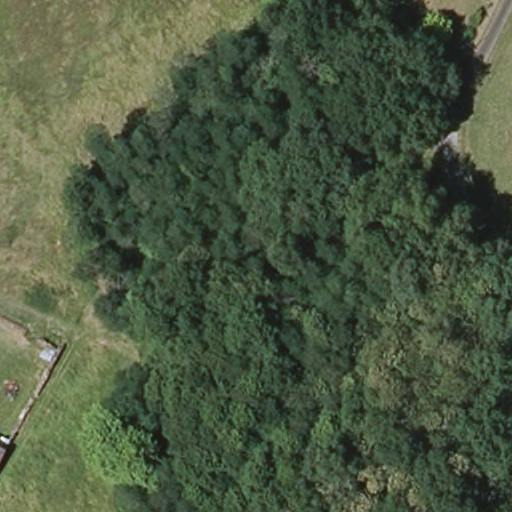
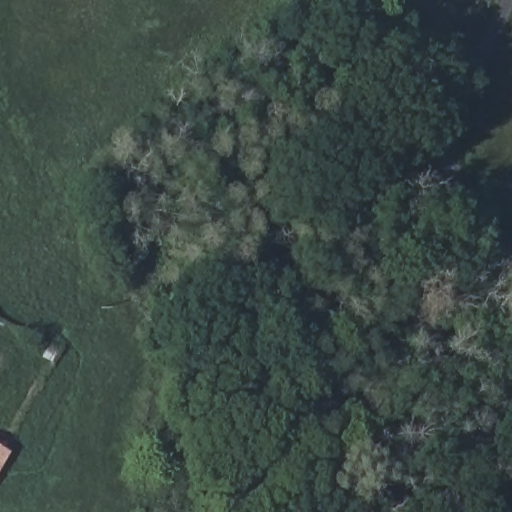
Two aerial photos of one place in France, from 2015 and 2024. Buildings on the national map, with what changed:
unchanged [(0,467),(0,447),(9,452),(0,467)]

